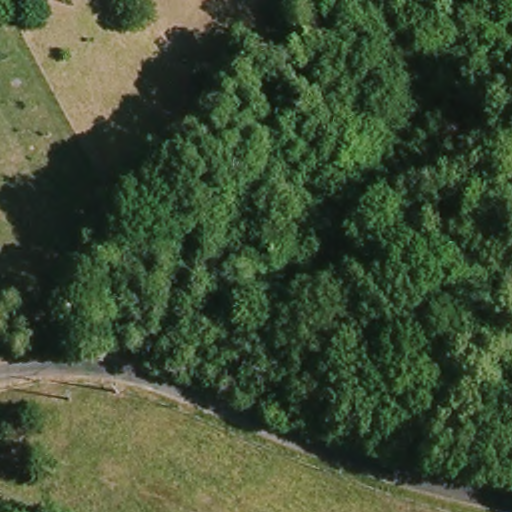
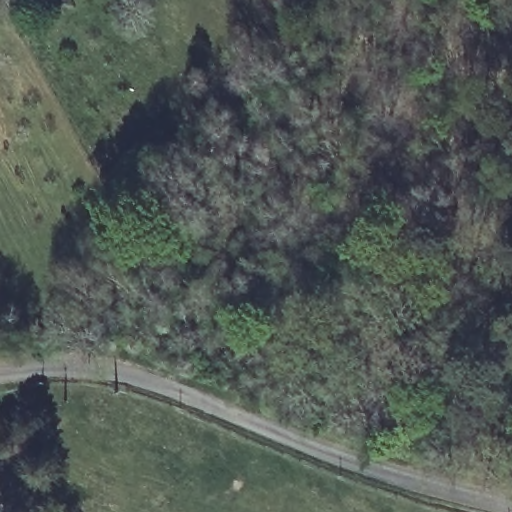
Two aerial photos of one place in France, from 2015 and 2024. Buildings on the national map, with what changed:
[]

